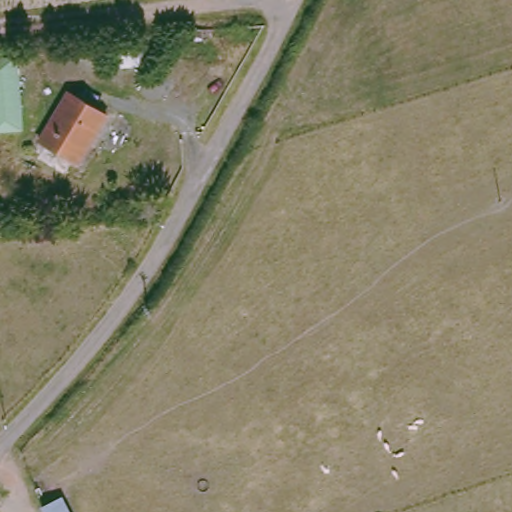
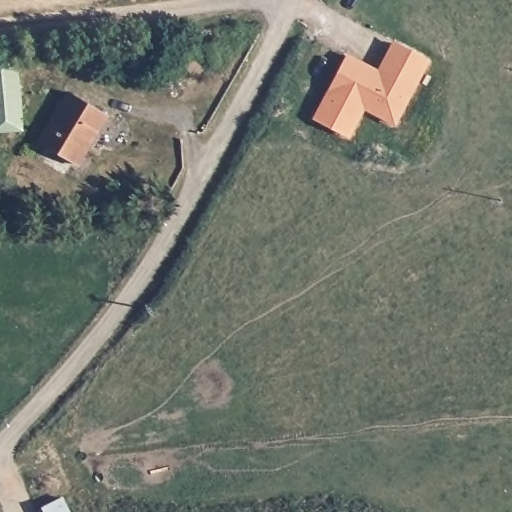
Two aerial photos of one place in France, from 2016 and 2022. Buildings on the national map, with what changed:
new [(378,69),(394,41),(432,60),(395,125),(328,91),(349,54),(378,69)]
unchanged [(117,46),(143,45),(143,64),(117,66),(117,46)]
unchanged [(22,126),(0,127),(0,54),(17,53),(22,126)]
unchanged [(82,159),(42,135),(68,91),(108,115),(82,159)]
unchanged [(71,512),(47,512),(42,502),(61,493),(71,512)]

